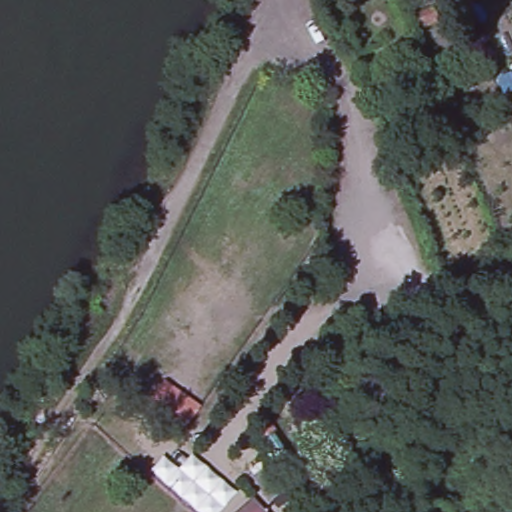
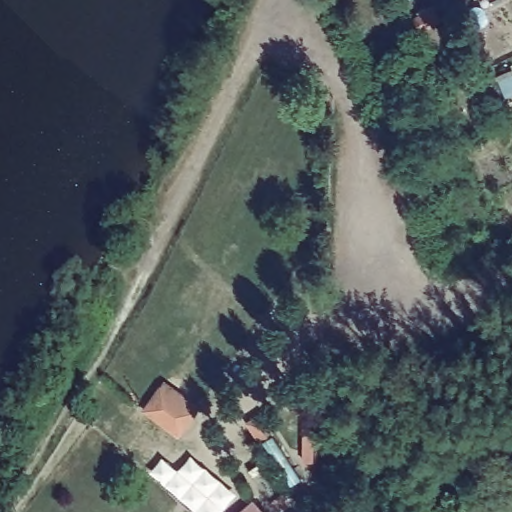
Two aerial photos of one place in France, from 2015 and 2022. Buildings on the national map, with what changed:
unchanged [(447,23),(425,35),(415,16),(436,4),(447,23)]
new [(158,419),(140,408),(164,377),(205,408),(196,419),(181,438),(158,419)]
demolished [(172,401),(196,419),(181,438),(158,419),(172,401)]
unchanged [(262,506),(267,512),(255,512),(262,506)]

